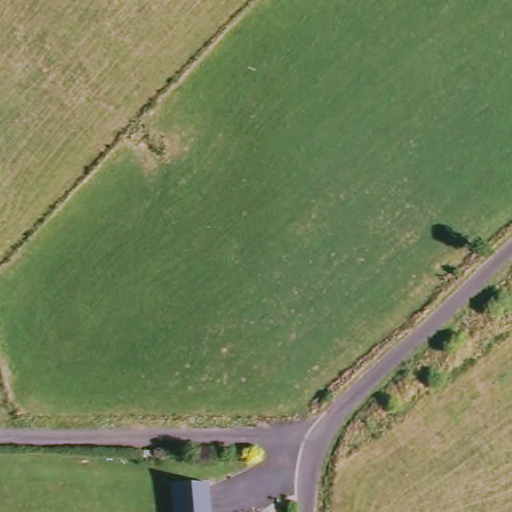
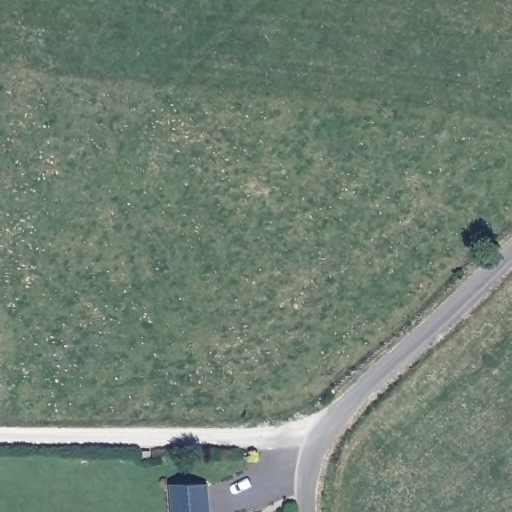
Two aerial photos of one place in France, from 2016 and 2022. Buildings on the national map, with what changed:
unchanged [(173,512),(171,482),(203,482),(206,512),(173,512)]

